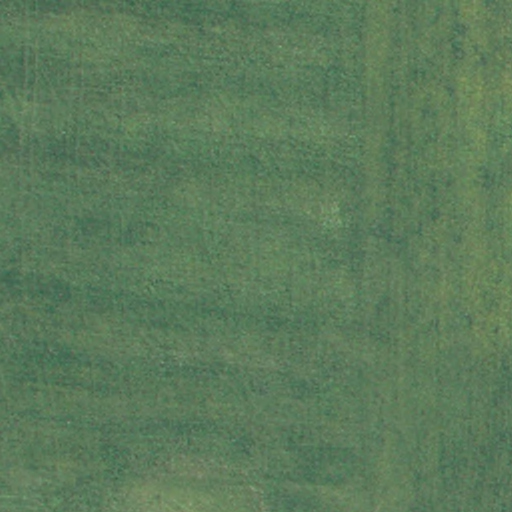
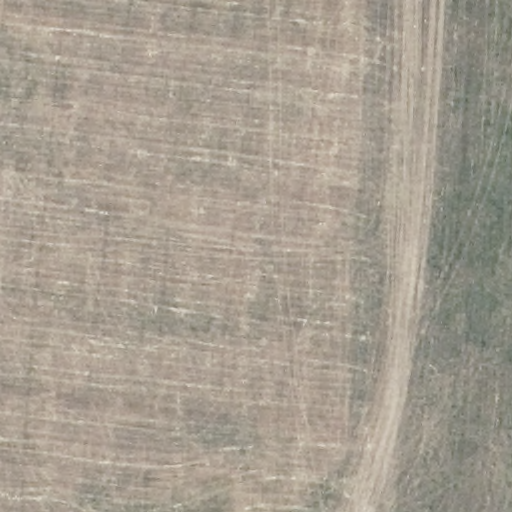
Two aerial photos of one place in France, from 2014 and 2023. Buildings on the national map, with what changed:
[]

